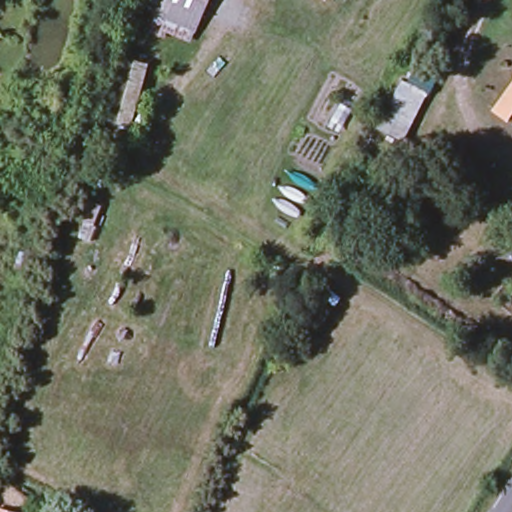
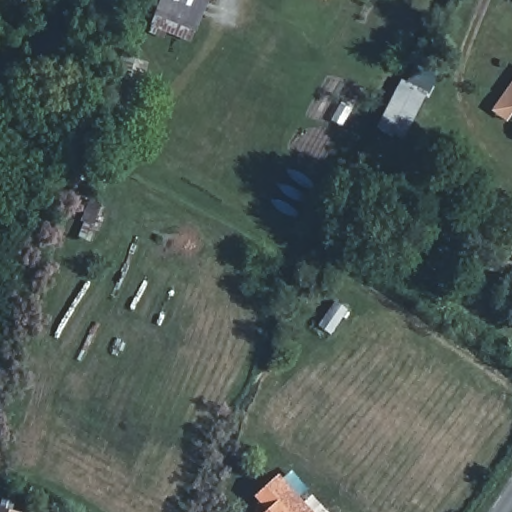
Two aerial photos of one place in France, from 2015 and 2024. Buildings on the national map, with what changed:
unchanged [(158,0),(203,0),(184,37),(149,20),(158,0)]
unchanged [(377,133),(400,90),(404,91),(422,57),(438,67),(402,146),(377,133)]
unchanged [(492,114),(512,84),(512,116),(508,122),(492,114)]
new [(279,475),(312,512),(266,512),(254,497),(279,475)]
unchanged [(7,512),(0,512),(0,510),(7,512)]

